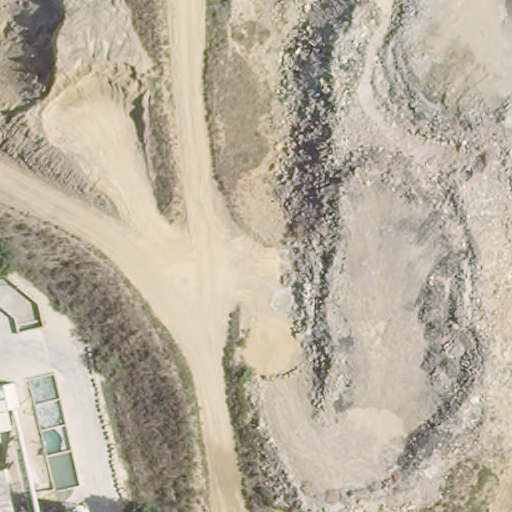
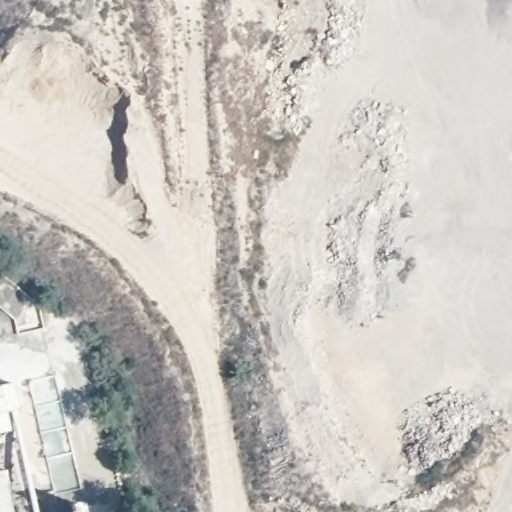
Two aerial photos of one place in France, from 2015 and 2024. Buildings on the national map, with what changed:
unchanged [(0,392),(2,391),(6,406),(9,433),(0,435),(0,392)]

